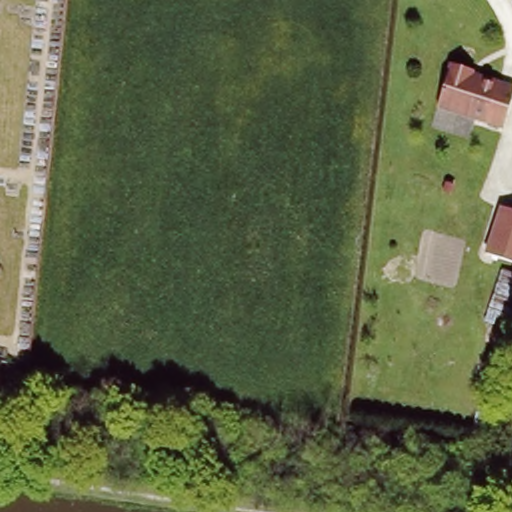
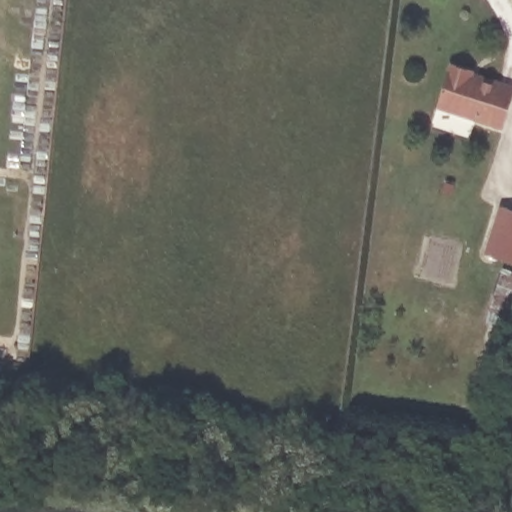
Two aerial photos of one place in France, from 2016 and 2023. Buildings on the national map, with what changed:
unchanged [(512,86),(512,97),(503,128),(439,107),(454,63),(471,68),(470,72),(512,86)]
unchanged [(512,209),(512,263),(483,252),(499,204),(512,209)]
unchanged [(512,280),(512,310),(509,324),(481,319),(492,275),(512,280)]

